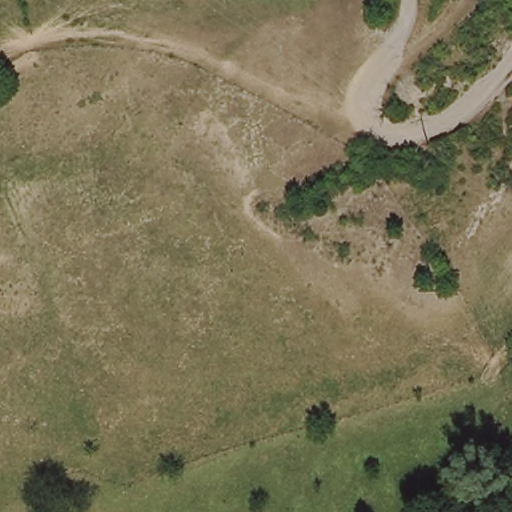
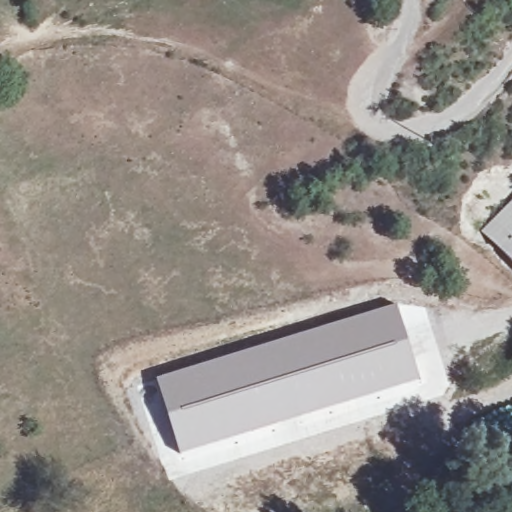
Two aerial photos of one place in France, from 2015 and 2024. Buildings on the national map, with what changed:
new [(483,233),(512,205),(512,262),(483,233)]
new [(395,303),(421,382),(392,391),(397,409),(295,441),(240,456),(235,443),(231,444),(230,441),(179,455),(155,377),(395,303)]

